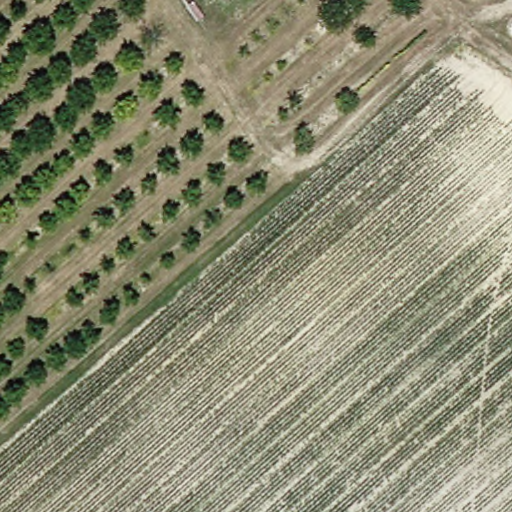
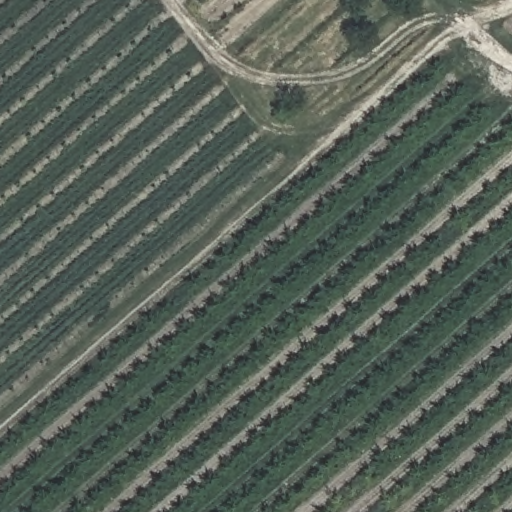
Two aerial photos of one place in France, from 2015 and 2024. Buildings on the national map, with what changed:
[]

